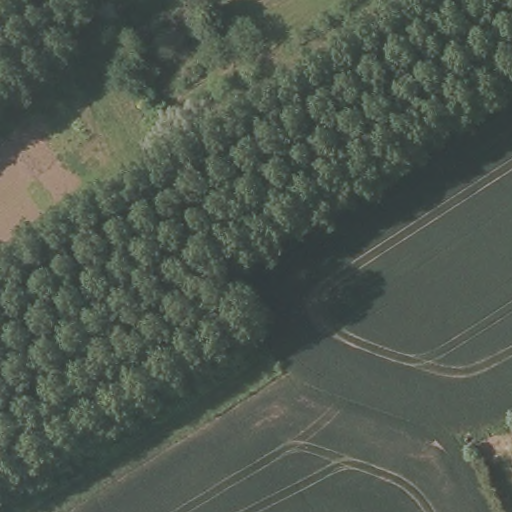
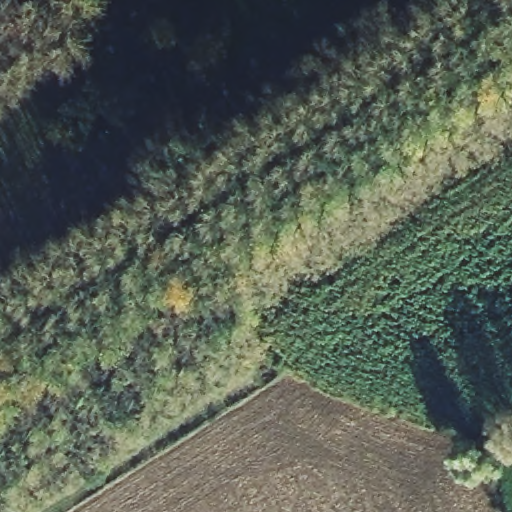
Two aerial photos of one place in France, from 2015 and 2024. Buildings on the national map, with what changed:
[]

